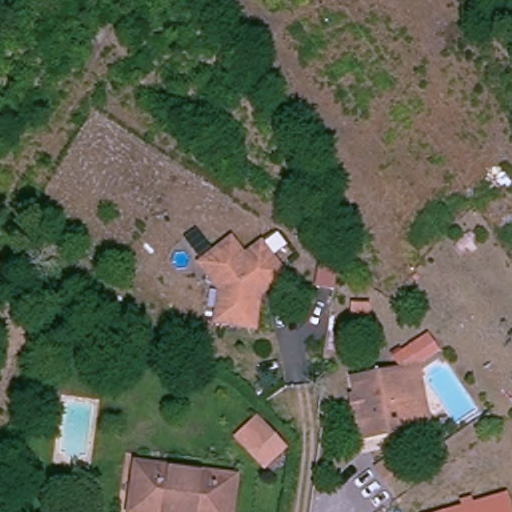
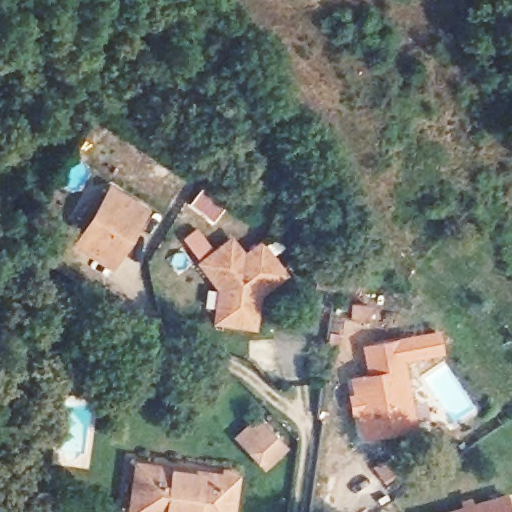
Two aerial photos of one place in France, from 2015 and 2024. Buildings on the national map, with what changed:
new [(151,209),(111,271),(71,245),(110,183),(151,209)]
unchanged [(223,312),(226,297),(204,271),(232,247),(247,263),(263,249),(285,274),(287,278),(263,299),(258,334),(226,329),(221,328),(223,312)]
unchanged [(345,410),(343,396),(350,396),(347,378),(397,371),(412,370),(422,427),(407,429),(357,437),(352,417),(352,409),(345,410)]
unchanged [(288,448),(270,467),(241,438),(258,419),(288,448)]
unchanged [(219,512),(137,512),(134,512),(140,467),(224,480),(219,512)]
unchanged [(471,496),(472,501),(507,495),(512,509),(512,512),(434,512),(471,496)]

